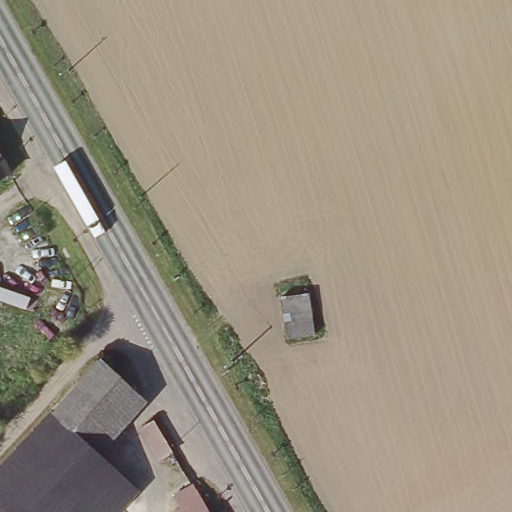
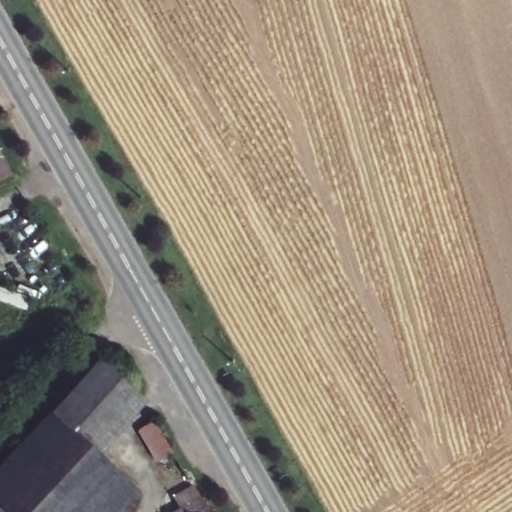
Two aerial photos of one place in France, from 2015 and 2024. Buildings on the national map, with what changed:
unchanged [(0,180),(0,154),(11,174),(0,180)]
demolished [(315,318),(317,337),(287,342),(283,300),(312,295),(315,318)]
unchanged [(95,454),(52,412),(95,366),(114,363),(140,409),(95,454)]
unchanged [(133,494),(118,512),(0,512),(0,470),(52,412),(95,454),(133,494)]
unchanged [(160,460),(143,431),(154,424),(171,454),(160,460)]
unchanged [(162,500),(185,487),(192,500),(199,512),(169,512),(162,500)]

